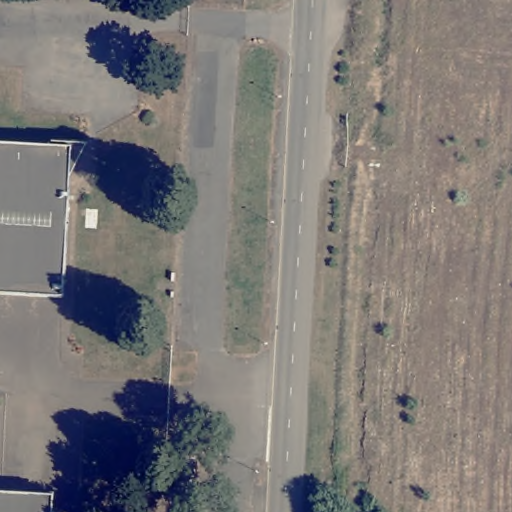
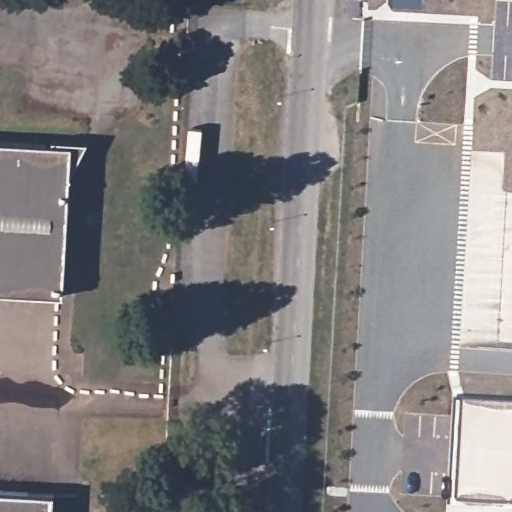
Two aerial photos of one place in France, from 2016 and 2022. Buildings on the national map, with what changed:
unchanged [(0,295),(0,144),(15,144),(14,151),(24,151),(25,139),(88,143),(66,183),(67,185),(62,298),(0,295)]
new [(462,405),(512,404),(512,505),(456,504),(462,405)]
unchanged [(52,494),(51,512),(0,512),(0,492),(52,494)]

